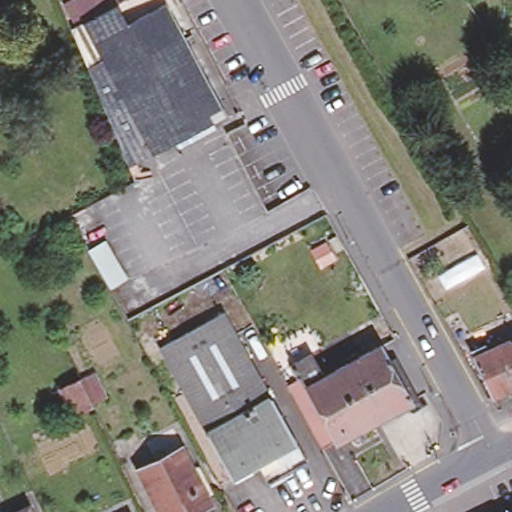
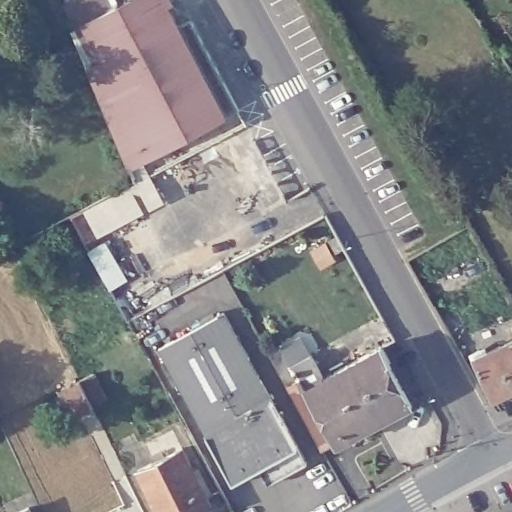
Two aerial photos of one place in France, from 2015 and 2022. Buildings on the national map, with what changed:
unchanged [(73,0),(119,0),(121,3),(92,18),(78,26),(66,4),(73,0)]
unchanged [(121,3),(127,0),(166,0),(95,40),(153,151),(131,162),(75,27),(78,26),(92,18),(121,3)]
unchanged [(166,0),(169,0),(226,111),(153,151),(95,40),(166,0)]
unchanged [(101,243),(123,281),(110,290),(87,251),(101,243)]
unchanged [(303,456),(265,477),(256,462),(229,477),(155,342),(220,306),(303,456)]
unchanged [(451,323),(446,325),(443,319),(447,317),(451,323)]
unchanged [(296,375),(290,362),(314,351),(325,372),(384,341),(414,397),(336,439),(335,436),(321,444),(286,380),(296,375)]
unchanged [(492,400),(475,358),(512,342),(512,391),(492,400)]
unchanged [(75,418),(64,391),(82,382),(95,375),(107,400),(95,406),(95,408),(75,418)]
unchanged [(208,502),(189,512),(157,512),(135,466),(179,444),(208,502)]
unchanged [(40,512),(6,512),(34,499),(40,512)]

